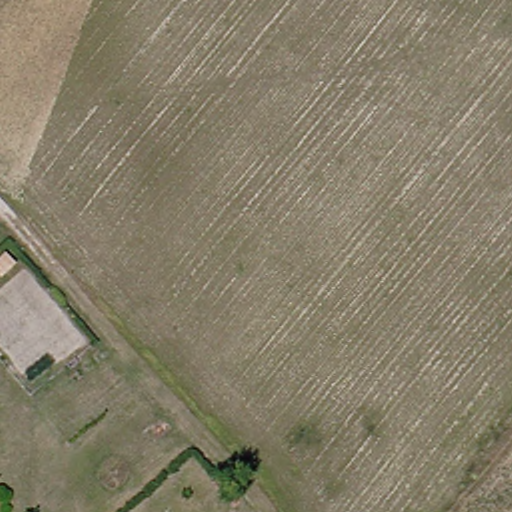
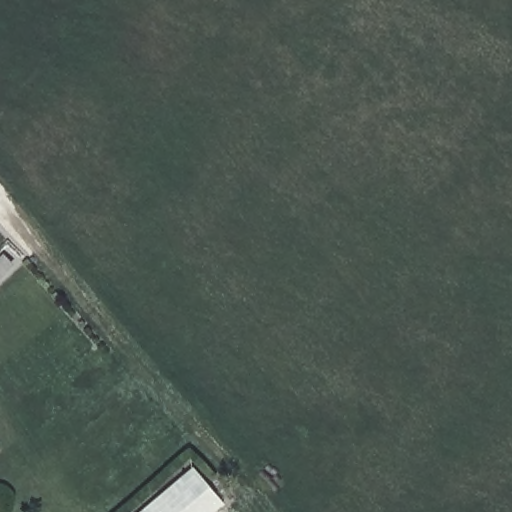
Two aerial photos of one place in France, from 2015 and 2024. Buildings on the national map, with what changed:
new [(214,512),(141,512),(195,467),(224,504),(214,512)]
unchanged [(28,483),(13,495),(4,484),(19,472),(28,483)]

